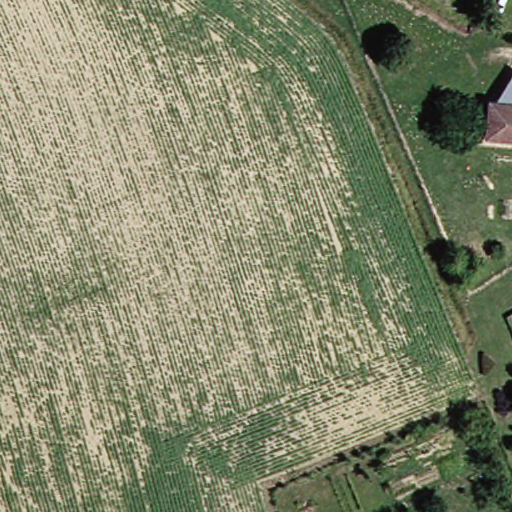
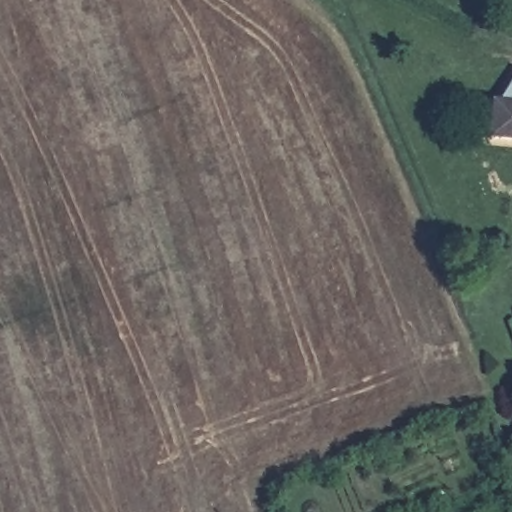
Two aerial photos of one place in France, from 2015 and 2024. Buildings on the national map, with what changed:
unchanged [(512,140),(479,137),(483,101),(489,101),(509,69),(512,71),(512,140)]

